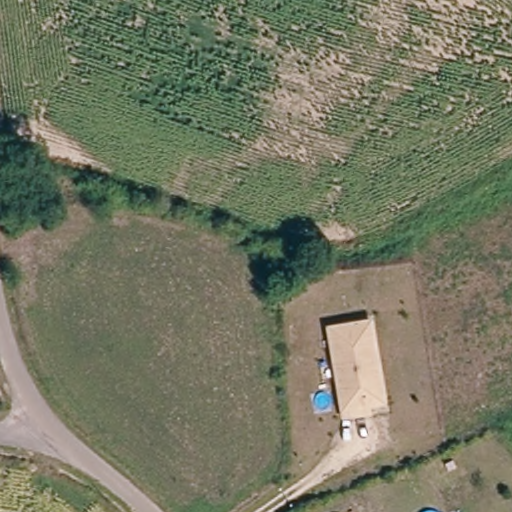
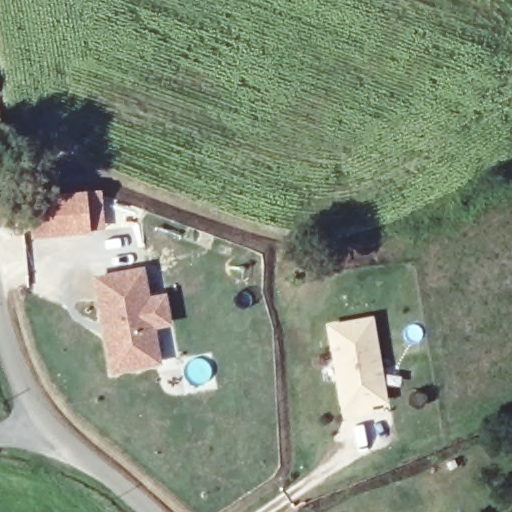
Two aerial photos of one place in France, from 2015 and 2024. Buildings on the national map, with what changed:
new [(103,227),(90,234),(33,239),(29,196),(99,190),(103,227)]
new [(109,374),(91,277),(143,267),(149,296),(166,293),(172,327),(155,329),(160,363),(109,374)]
unchanged [(359,410),(341,412),(329,322),(371,317),(381,398),(365,401),(366,408),(359,410)]

